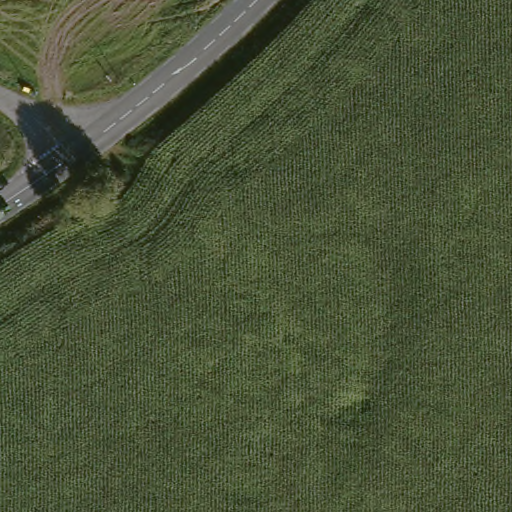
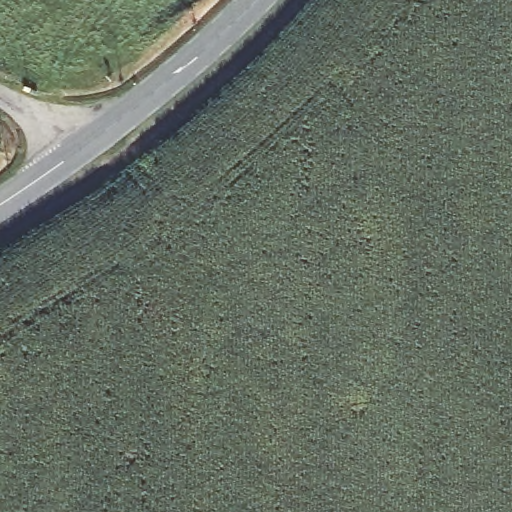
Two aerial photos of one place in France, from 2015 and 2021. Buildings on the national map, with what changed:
[]

